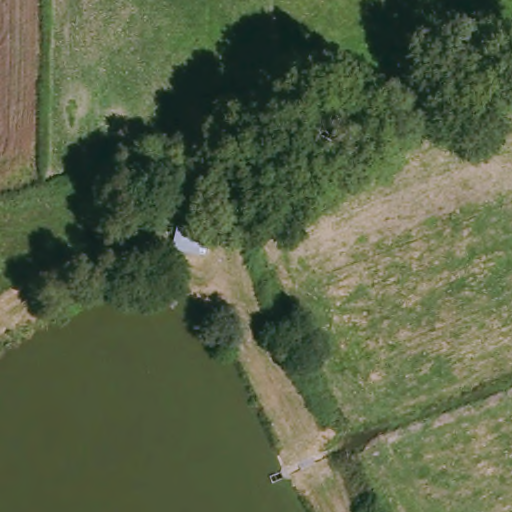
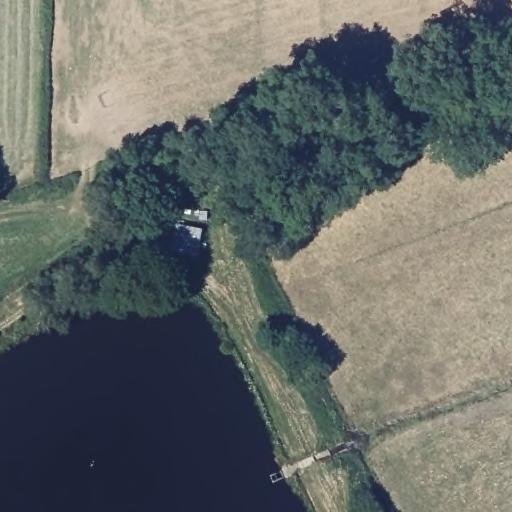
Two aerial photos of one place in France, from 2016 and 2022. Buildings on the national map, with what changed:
unchanged [(172,254),(182,219),(212,229),(206,261),(172,254)]

